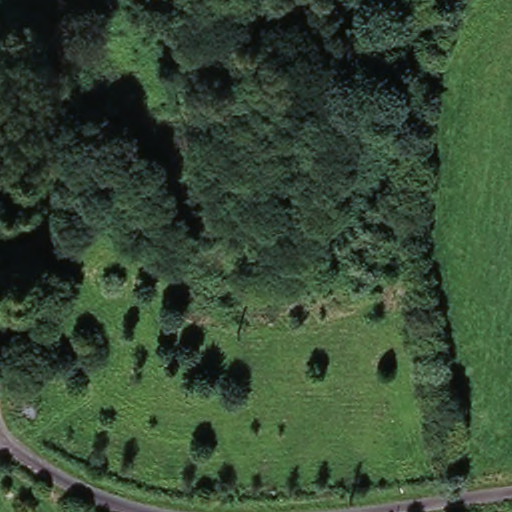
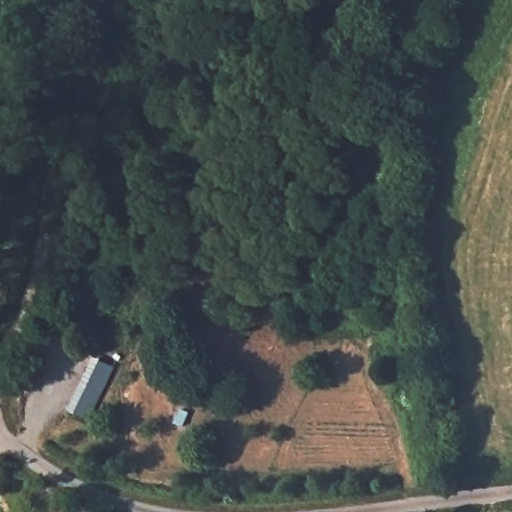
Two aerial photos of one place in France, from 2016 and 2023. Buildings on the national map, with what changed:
new [(67,410),(94,356),(115,367),(90,419),(67,410)]

